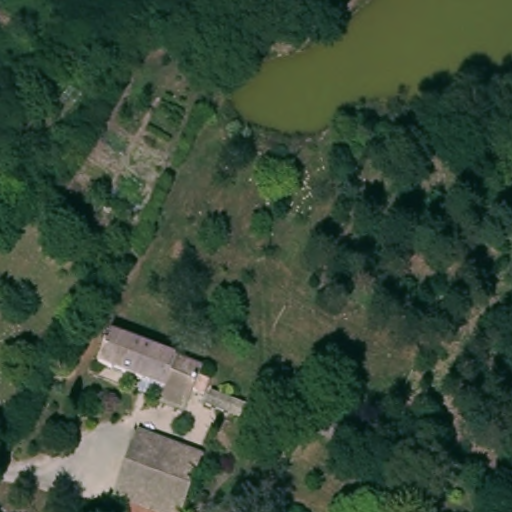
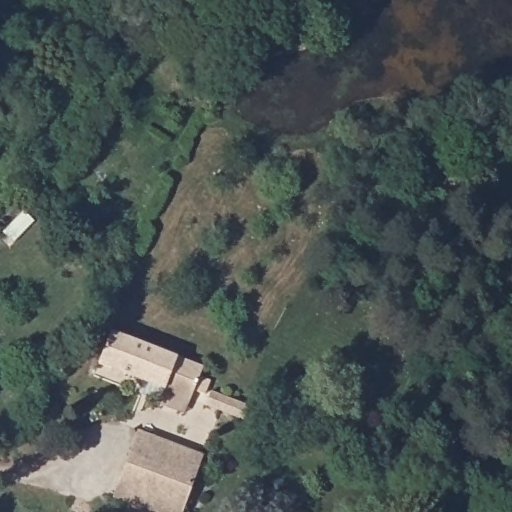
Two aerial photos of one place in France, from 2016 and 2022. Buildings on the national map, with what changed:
unchanged [(151,403),(157,390),(94,363),(107,326),(194,364),(190,374),(202,379),(196,396),(185,392),(181,400),(176,414),(151,403)]
unchanged [(244,396),(236,417),(200,402),(208,381),(244,396)]
unchanged [(201,454),(181,512),(158,512),(113,496),(134,431),(201,454)]

